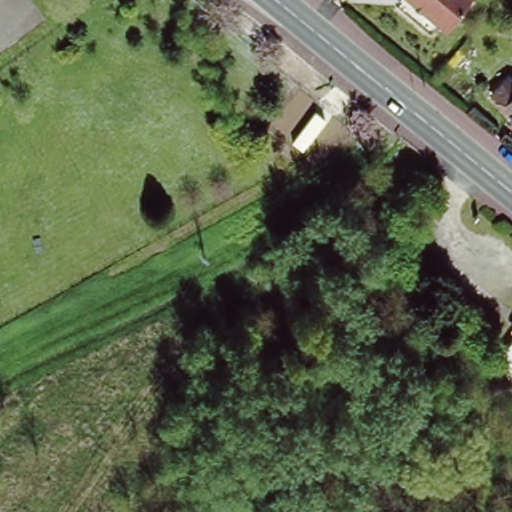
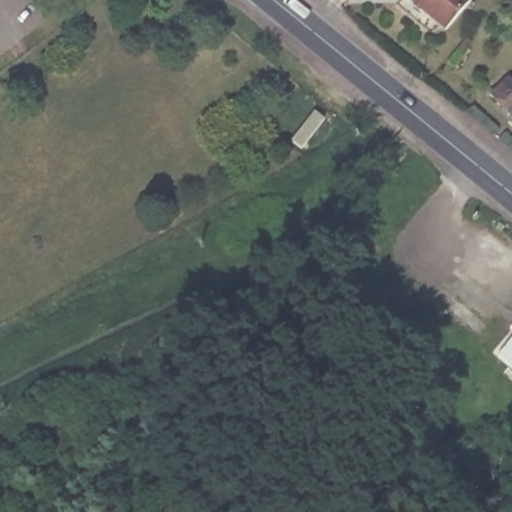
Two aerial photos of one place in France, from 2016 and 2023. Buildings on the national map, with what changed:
unchanged [(445,32),(407,0),(472,0),(445,32)]
unchanged [(510,82),(512,85),(512,125),(490,101),(510,82)]
unchanged [(512,339),(512,372),(496,359),(512,339)]

